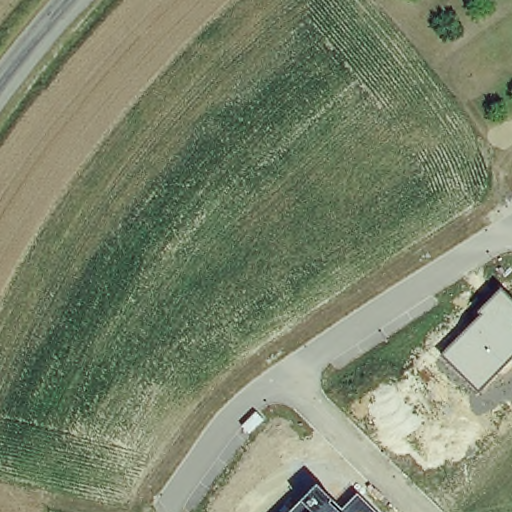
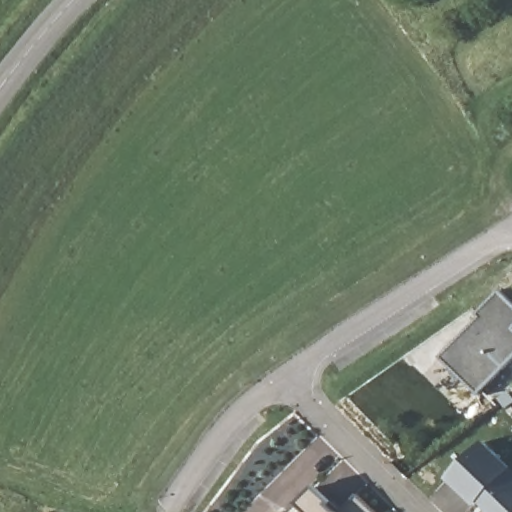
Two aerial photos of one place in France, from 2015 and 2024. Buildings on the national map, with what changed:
unchanged [(512,299),(512,359),(480,392),(441,355),(481,315),(479,312),(502,289),(512,299)]
new [(476,501),(472,505),(446,478),(483,439),(512,467),(512,512),(486,512),(485,507),(476,501)]
unchanged [(317,486),(332,500),(343,509),(357,495),(376,512),(292,512),(302,501),(317,486)]
unchanged [(292,512),(279,512),(285,505),(292,512)]

